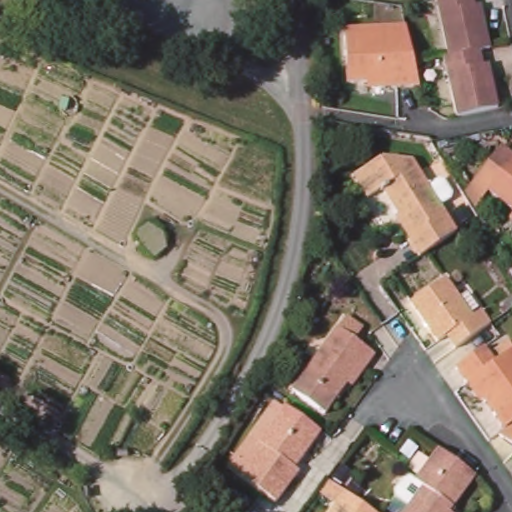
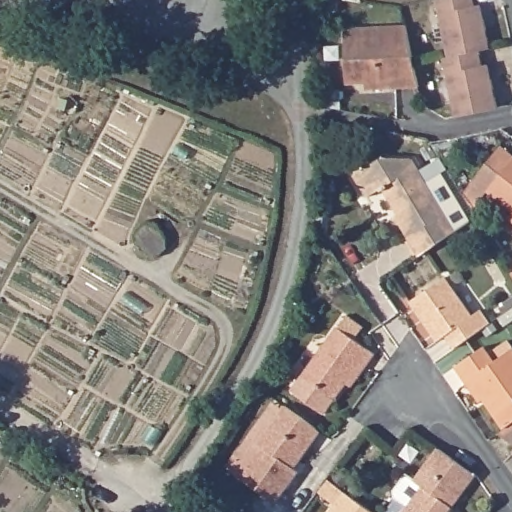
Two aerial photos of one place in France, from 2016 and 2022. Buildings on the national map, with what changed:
unchanged [(497,80),(503,108),(461,117),(449,59),(453,58),(441,0),(478,0),(480,7),(486,5),(489,21),(495,49),(485,51),(488,66),(494,65),(497,80)]
unchanged [(411,26),(424,88),(378,90),(371,83),(352,84),(349,28),(411,26)]
unchanged [(385,157),(418,159),(462,230),(424,256),(412,236),(416,235),(386,188),(373,196),(359,174),(385,157)]
unchanged [(512,206),(492,191),(512,165),(512,206)]
unchanged [(451,277),(478,316),(485,310),(494,324),(461,347),(451,334),(442,341),(415,302),(451,277)]
unchanged [(512,309),(508,304),(512,301),(512,309)]
unchanged [(351,382),(339,400),(307,377),(349,318),(365,329),(358,339),(380,355),(371,368),(357,387),(351,382)]
unchanged [(461,368),(490,346),(500,361),(512,353),(512,408),(500,416),(489,399),(484,401),(472,384),(461,368)]
unchanged [(303,472),(281,503),(231,467),(239,456),(279,399),(289,406),(324,432),(298,469),(303,472)]
unchanged [(512,439),(503,433),(512,427),(512,439)]
unchanged [(420,480),(443,450),(479,476),(455,512),(409,512),(429,486),(420,480)]
unchanged [(372,512),(330,512),(344,492),(372,512)]

